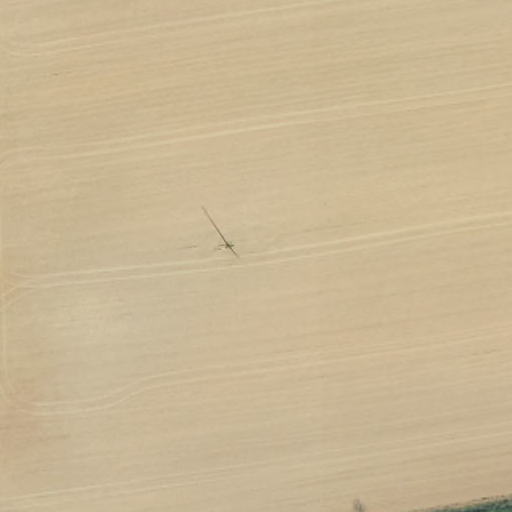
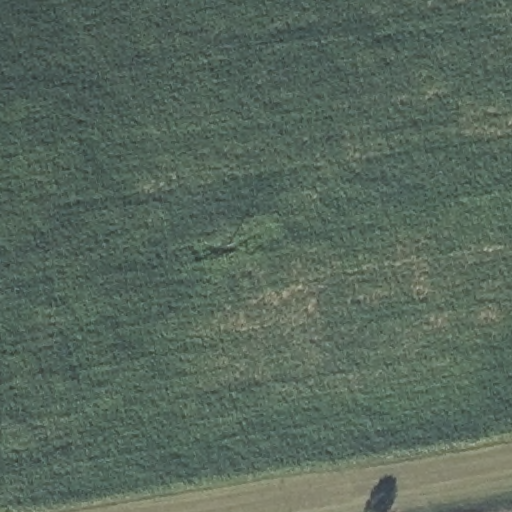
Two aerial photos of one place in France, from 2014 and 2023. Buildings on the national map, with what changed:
[]

